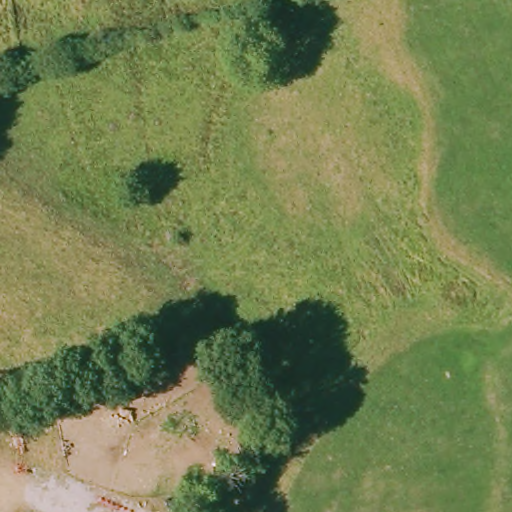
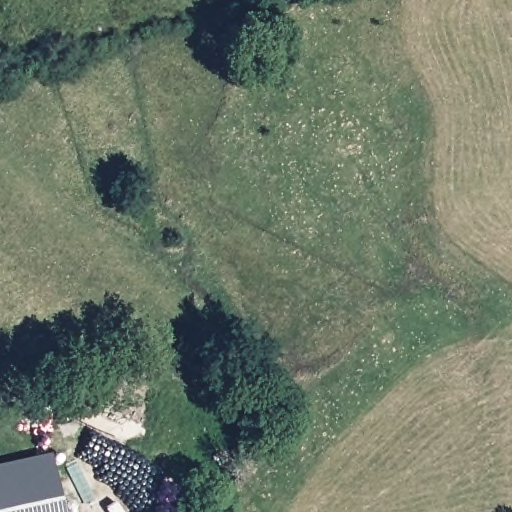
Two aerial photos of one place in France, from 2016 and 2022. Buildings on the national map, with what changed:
new [(60,503),(67,502),(69,502),(72,503),(73,506),(74,509),(73,512),(72,512),(0,512),(0,464),(49,453),(60,503)]

